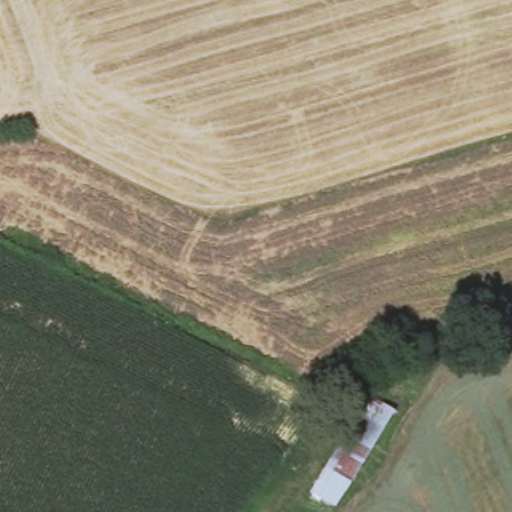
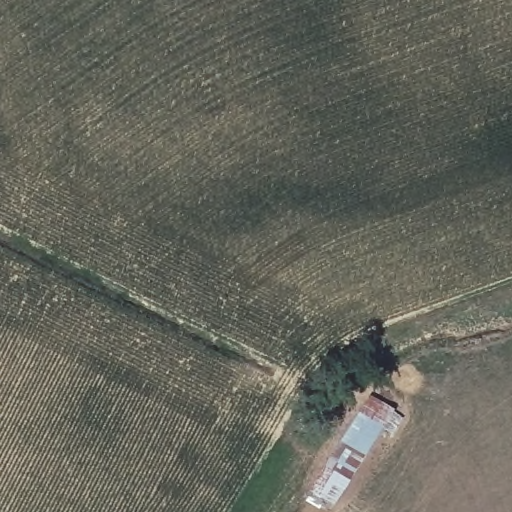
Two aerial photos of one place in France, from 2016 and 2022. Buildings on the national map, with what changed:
unchanged [(360,415),(387,430),(354,485),(327,468),(360,415)]

